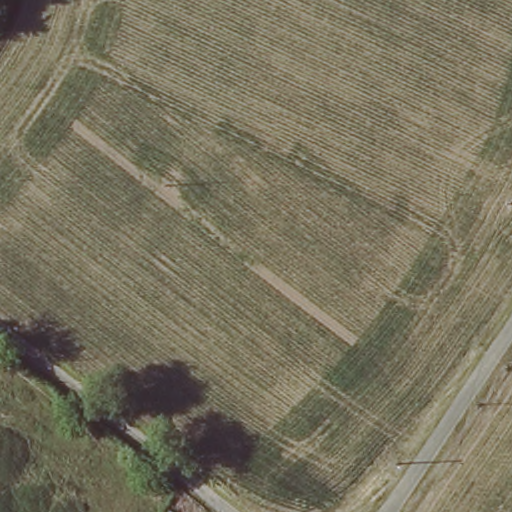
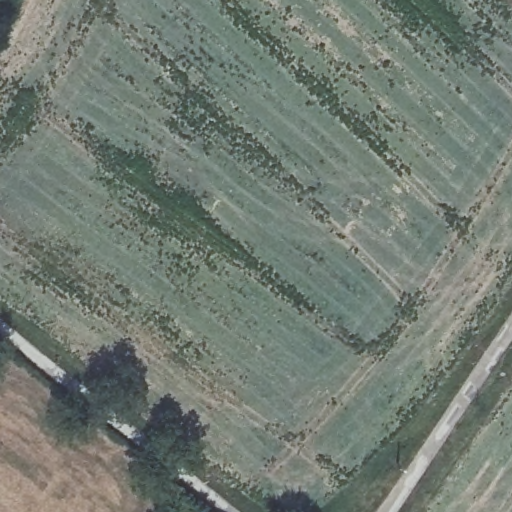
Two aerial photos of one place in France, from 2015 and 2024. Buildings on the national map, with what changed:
[]

